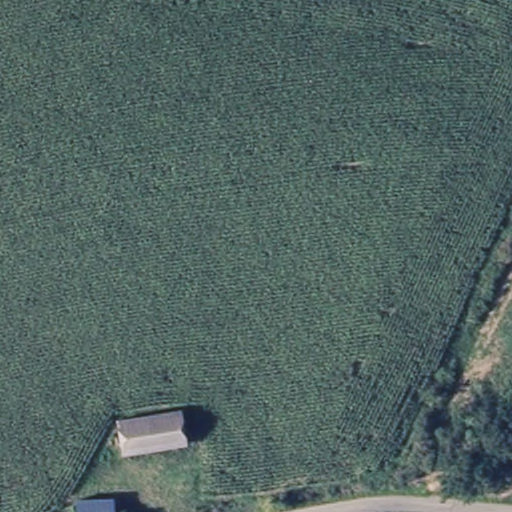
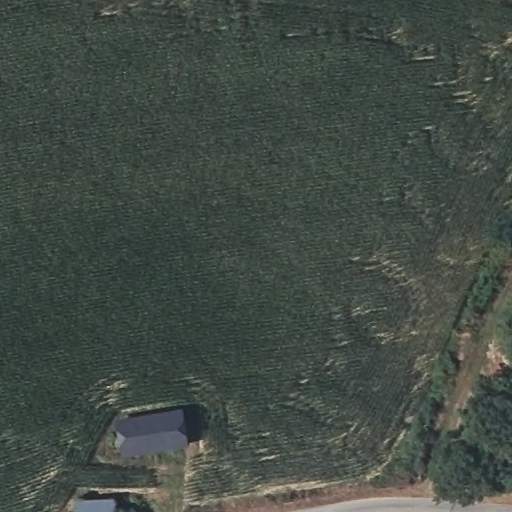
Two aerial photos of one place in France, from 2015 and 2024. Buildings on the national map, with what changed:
unchanged [(180,412),(186,445),(124,453),(119,421),(180,412)]
unchanged [(114,497),(116,512),(77,512),(76,500),(114,497)]

